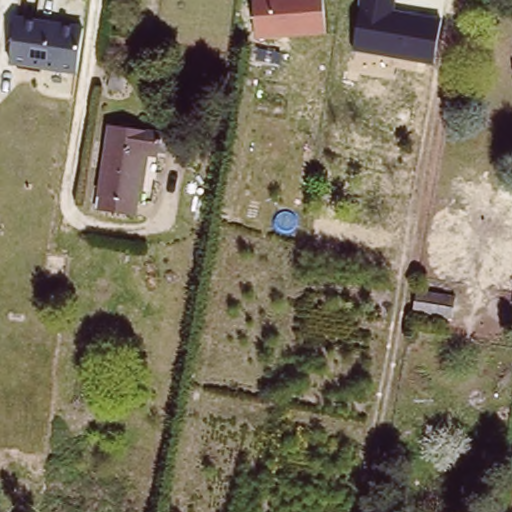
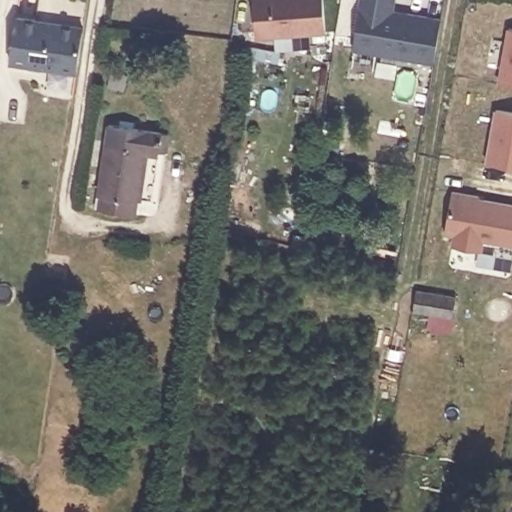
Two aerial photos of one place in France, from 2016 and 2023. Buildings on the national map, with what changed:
unchanged [(253,0),(324,0),(325,34),(255,39),(253,0)]
unchanged [(396,0),(395,9),(441,18),(433,64),(352,50),(360,0),(396,0)]
unchanged [(78,28),(71,71),(5,60),(12,17),(78,28)]
new [(508,28),(512,29),(512,87),(498,84),(508,28)]
unchanged [(251,64),(254,50),(270,54),(267,68),(251,64)]
new [(496,110),(512,113),(512,168),(487,164),(496,110)]
unchanged [(127,200),(96,195),(108,120),(151,125),(158,126),(155,149),(147,149),(136,146),(128,196),(127,200)]
new [(480,195),(479,198),(512,203),(512,246),(485,242),(482,252),(452,247),(453,238),(444,236),(452,190),(480,195)]
new [(456,295),(451,333),(427,329),(430,316),(413,313),(417,289),(456,295)]

